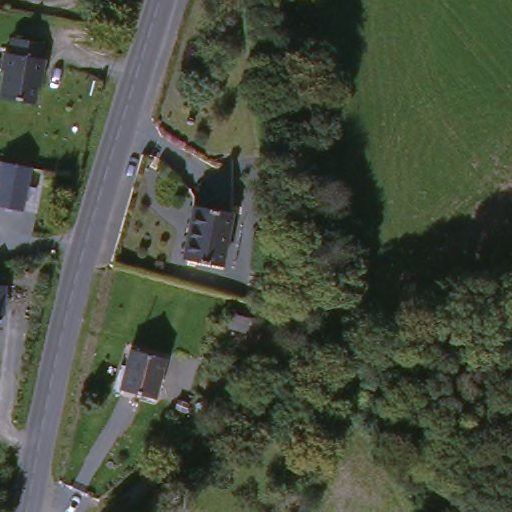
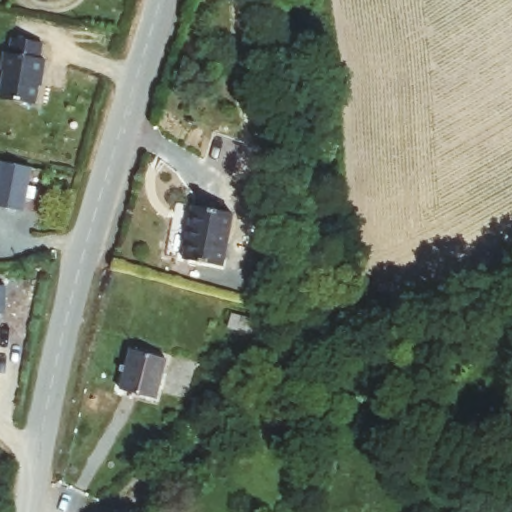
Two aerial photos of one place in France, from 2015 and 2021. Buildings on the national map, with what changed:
unchanged [(46,53),(31,105),(0,97),(0,61),(8,38),(46,53)]
unchanged [(6,158),(34,165),(24,207),(0,202),(0,180),(6,158)]
unchanged [(198,209),(231,218),(218,268),(183,259),(198,209)]
unchanged [(217,334),(234,339),(243,342),(239,355),(214,347),(217,334)]
unchanged [(164,363),(154,401),(119,393),(129,355),(164,363)]

